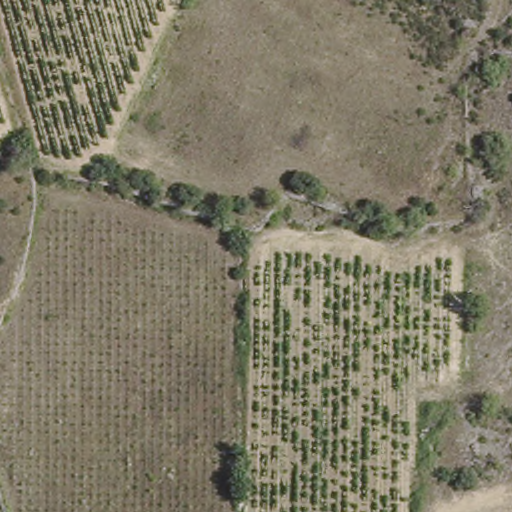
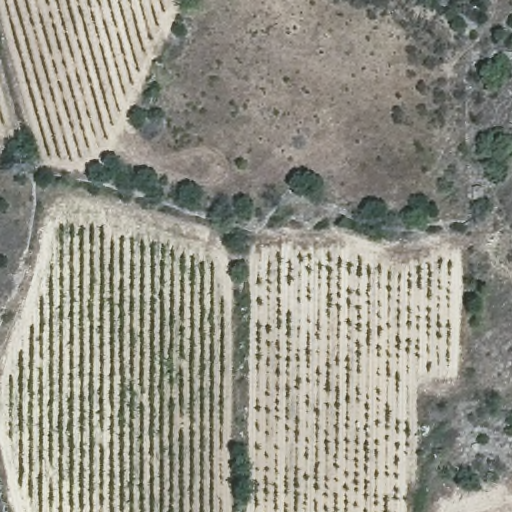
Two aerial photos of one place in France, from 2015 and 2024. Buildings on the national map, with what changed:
[]

